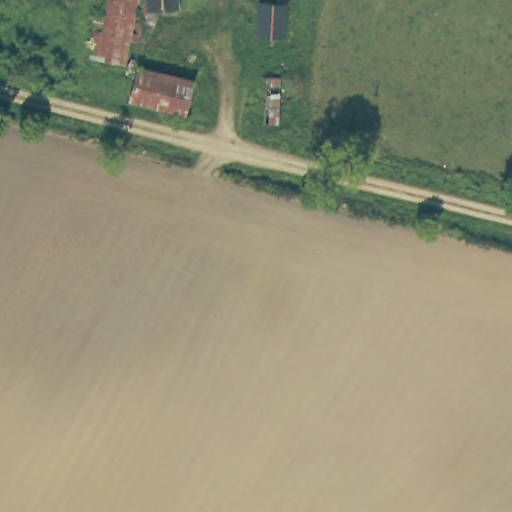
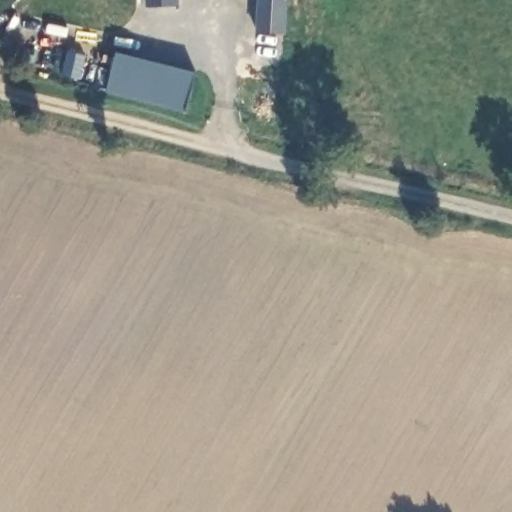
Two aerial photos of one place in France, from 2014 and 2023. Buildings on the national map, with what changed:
unchanged [(147,6),(147,0),(176,0),(176,5),(147,6)]
unchanged [(283,34),(256,32),(258,0),(285,2),(283,34)]
new [(67,52),(85,56),(79,79),(62,75),(67,52)]
new [(115,53),(195,73),(186,111),(106,91),(115,53)]

